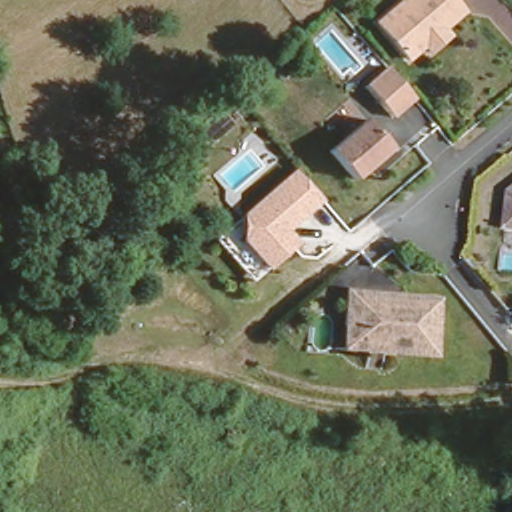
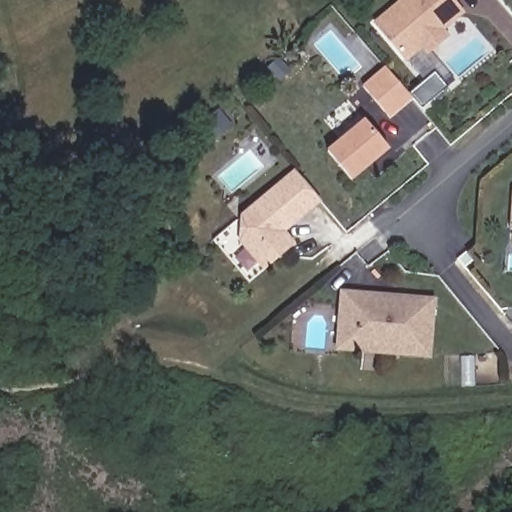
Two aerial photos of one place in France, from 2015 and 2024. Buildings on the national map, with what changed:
unchanged [(423,53),(417,46),(401,60),(370,23),(398,0),(439,0),(444,6),(453,16),(432,34),(438,40),(423,53)]
unchanged [(369,105),(354,86),(379,66),(394,84),(404,97),(380,117),(369,105)]
unchanged [(324,151),(363,119),(387,147),(349,180),(324,151)]
unchanged [(314,200),(273,234),(283,246),(257,268),(233,239),(237,235),(239,230),(240,225),(239,220),(239,216),(237,214),(289,170),(292,172),(314,200)]
unchanged [(504,232),(507,190),(512,185),(512,234),(504,232)]
unchanged [(348,330),(349,303),(349,295),(416,290),(415,297),(411,351),(398,351),(347,350),(348,330)]
unchanged [(238,381),(245,373),(255,382),(252,385),(238,381)]

